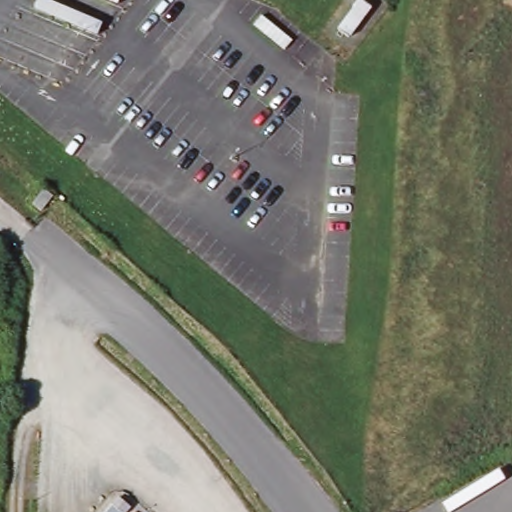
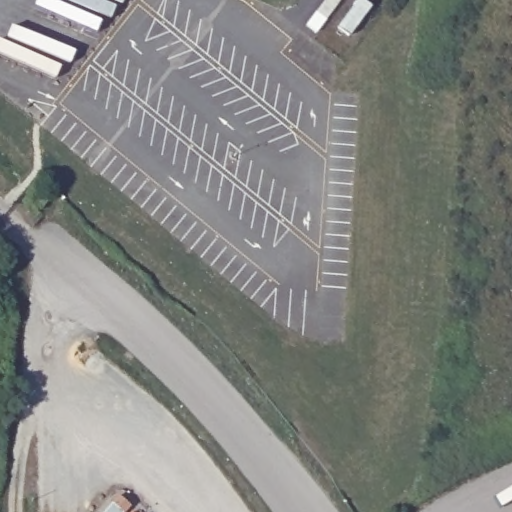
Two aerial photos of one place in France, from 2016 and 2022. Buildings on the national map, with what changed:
unchanged [(359,0),(364,0),(372,6),(349,37),(337,28),(359,0)]
unchanged [(137,512),(129,512),(132,508),(137,512)]

